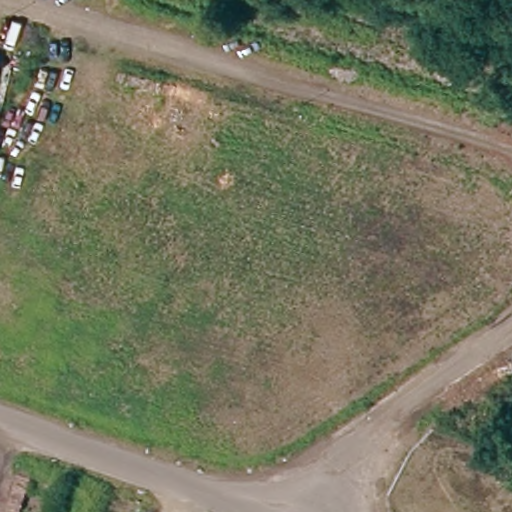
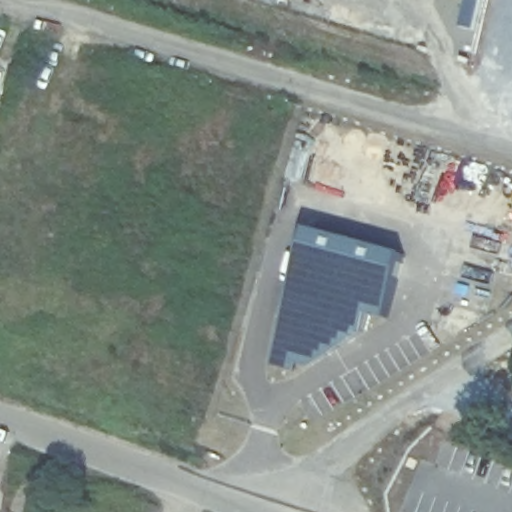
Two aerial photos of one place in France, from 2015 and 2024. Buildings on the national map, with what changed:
new [(406,255),(388,321),(370,316),(365,334),(310,368),(297,364),(294,373),(272,366),(308,229),(406,255)]

